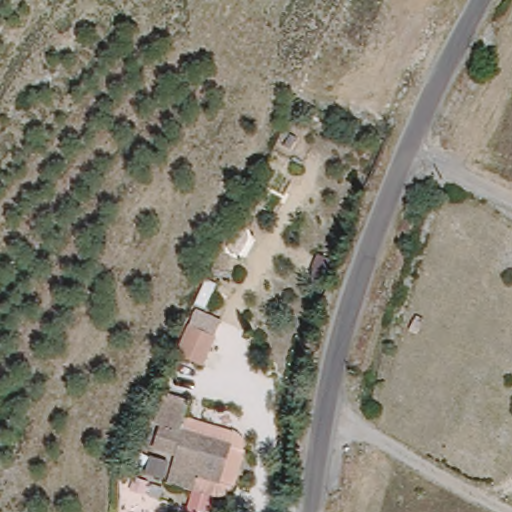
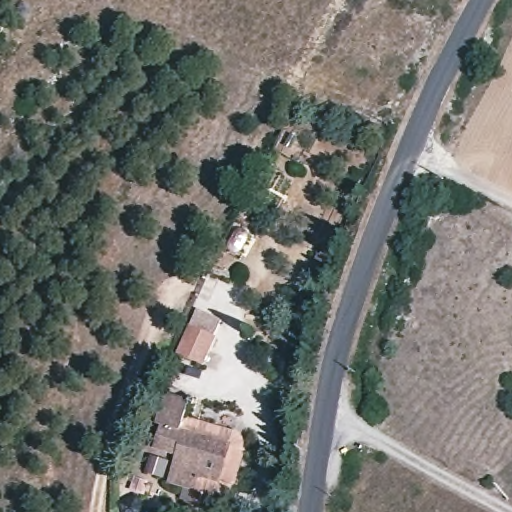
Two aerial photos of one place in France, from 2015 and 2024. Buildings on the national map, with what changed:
unchanged [(228,258),(235,261),(232,268),(212,261),(224,237),(235,242),(228,258)]
unchanged [(177,353),(193,317),(223,329),(208,366),(177,353)]
unchanged [(245,441),(245,451),(235,487),(229,494),(225,496),(218,497),(168,483),(173,469),(162,466),(164,460),(175,462),(178,453),(157,448),(164,424),(158,422),(166,394),(169,395),(172,387),(191,392),(185,416),(236,431),(242,436),(245,441)]

